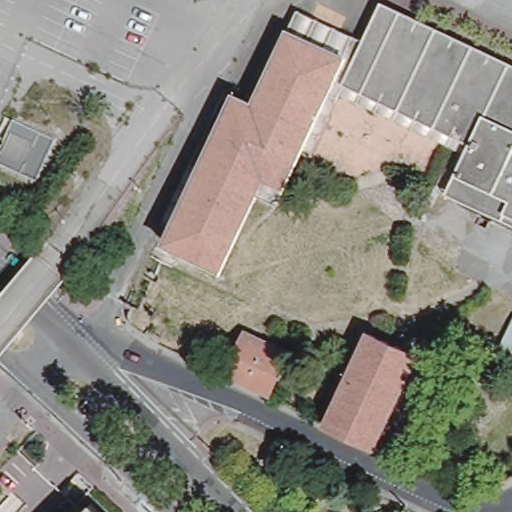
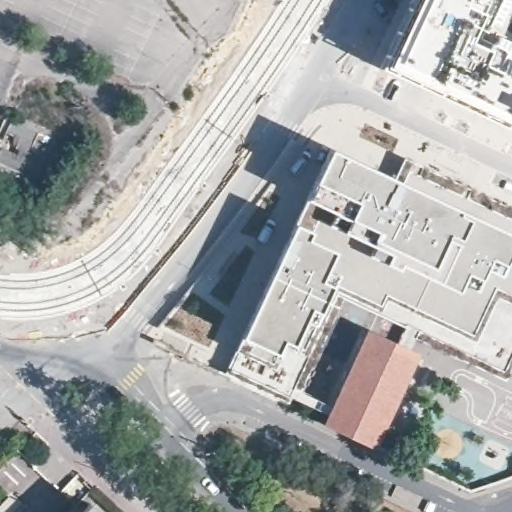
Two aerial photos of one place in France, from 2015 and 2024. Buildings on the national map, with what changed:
demolished [(473,145),(478,134),(346,73),(366,33),(383,0),(386,0),(512,58),(512,210),(455,184),(473,145)]
new [(512,15),(512,34),(509,41),(512,43),(512,117),(509,123),(503,125),(380,70),(413,0),(498,0),(495,7),(512,15)]
demolished [(264,186),(236,244),(225,266),(168,239),(176,222),(204,162),(238,89),(257,97),(292,25),(349,51),(281,194),(264,186)]
unchanged [(56,139),(36,178),(0,159),(0,156),(3,150),(0,149),(0,134),(10,115),(56,139)]
new [(381,310),(343,292),(290,399),(230,371),(244,336),(332,147),(463,210),(512,234),(512,357),(506,371),(421,332),(381,310)]
new [(463,210),(395,177),(405,158),(512,208),(512,234),(463,210)]
demolished [(241,324),(294,348),(272,394),(221,368),(241,324)]
unchanged [(419,350),(375,445),(330,424),(375,329),(419,350)]
unchanged [(91,503),(100,512),(83,512),(91,503)]

